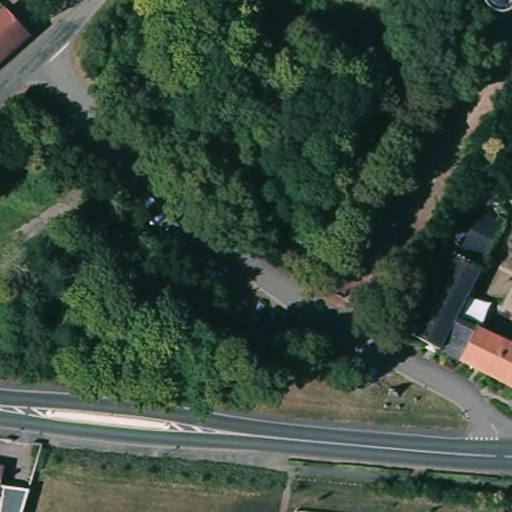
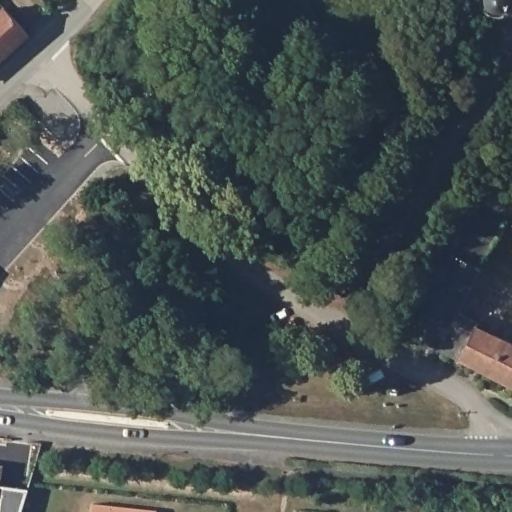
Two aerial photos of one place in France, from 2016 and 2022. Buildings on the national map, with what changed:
unchanged [(500,13),(490,11),(485,9),(481,3),(481,0),(512,0),(512,2),(507,9),(500,13)]
unchanged [(24,34),(0,55),(0,9),(24,34)]
unchanged [(94,137),(77,156),(61,140),(78,120),(94,137)]
unchanged [(504,223),(493,244),(455,318),(512,348),(512,389),(408,335),(465,229),(474,208),(504,223)]
unchanged [(23,490),(20,499),(16,512),(0,512),(0,486),(23,490)]
new [(92,504),(156,511),(155,512),(91,512),(92,504)]

